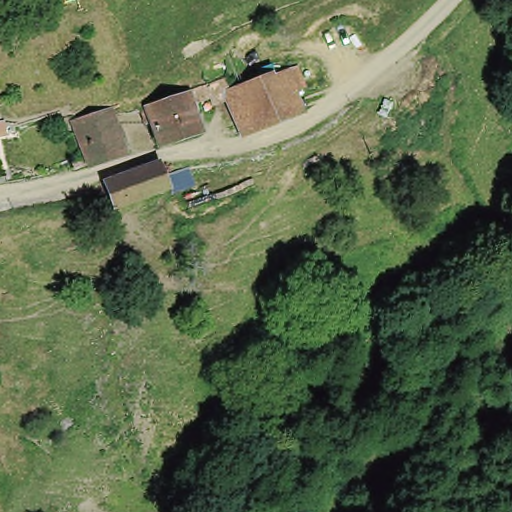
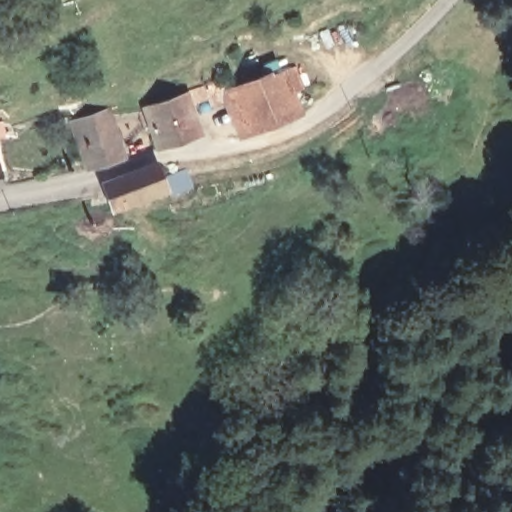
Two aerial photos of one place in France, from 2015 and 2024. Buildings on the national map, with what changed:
unchanged [(279,124),(245,138),(230,97),(278,76),(290,72),(298,92),(286,97),(290,106),(295,116),(279,124)]
unchanged [(181,96),(200,90),(220,84),(225,101),(205,108),(203,104),(185,110),(195,138),(151,154),(138,113),(182,99),(181,96)]
unchanged [(121,156),(89,166),(75,123),(106,112),(121,156)]
unchanged [(96,189),(153,171),(158,185),(161,195),(105,214),(98,194),(96,189)]

